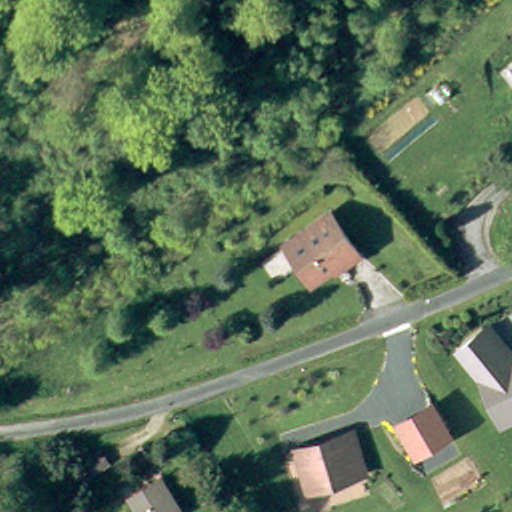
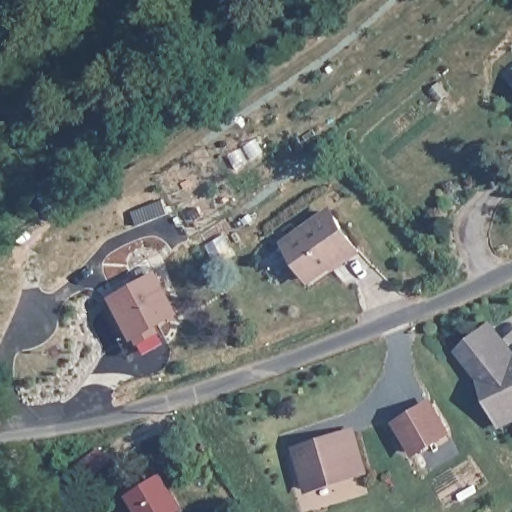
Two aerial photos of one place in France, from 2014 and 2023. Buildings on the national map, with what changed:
unchanged [(342,266),(340,263),(317,280),(292,245),(334,215),(360,254),(342,266)]
new [(184,313),(134,340),(110,296),(159,269),(184,313)]
unchanged [(470,372),(452,345),(477,326),(502,363),(512,362),(512,413),(485,420),(470,372)]
unchanged [(456,434),(419,457),(395,420),(434,398),(456,434)]
unchanged [(372,472),(321,492),(310,455),(360,437),(372,472)]
unchanged [(177,512),(144,512),(137,496),(161,482),(177,512)]

